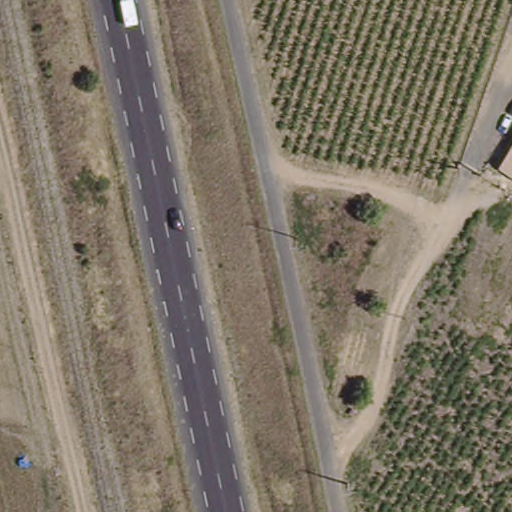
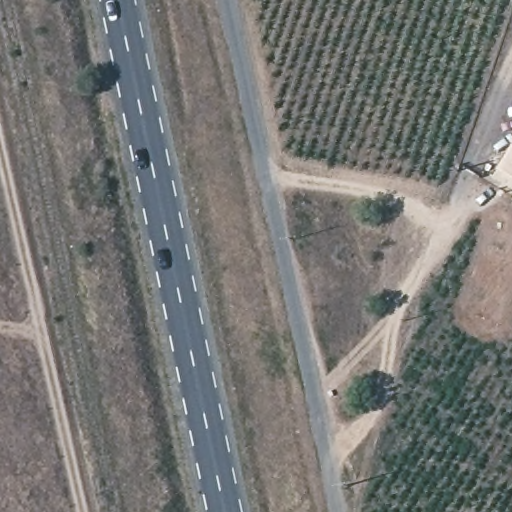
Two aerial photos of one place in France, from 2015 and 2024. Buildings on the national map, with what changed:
unchanged [(512,178),(500,171),(512,151),(512,178)]

